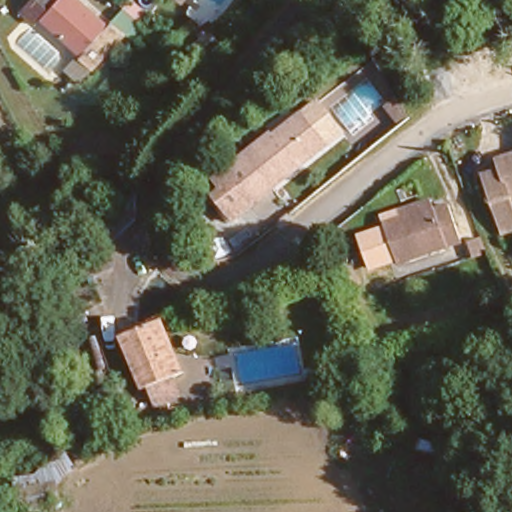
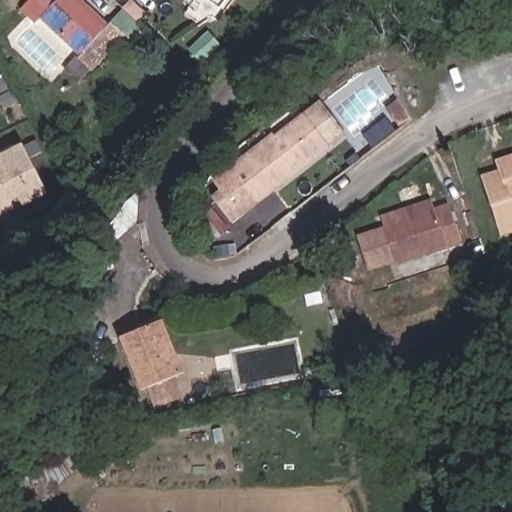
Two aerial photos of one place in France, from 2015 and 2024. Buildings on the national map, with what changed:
unchanged [(83,45),(44,9),(38,15),(22,0),(91,0),(110,16),(114,13),(125,24),(94,56),(82,71),(70,60),(83,46),(83,45)]
unchanged [(404,101),(419,117),(408,125),(394,109),(404,101)]
unchanged [(226,172),(269,138),(272,141),(301,118),(325,149),(252,206),(226,172)]
new [(19,143),(42,188),(0,210),(0,153),(19,143)]
unchanged [(484,177),(504,171),(500,159),(512,154),(512,220),(498,225),(484,177)]
unchanged [(463,234),(397,254),(385,216),(403,211),(401,203),(432,193),(435,201),(450,197),(463,234)]
unchanged [(116,331),(152,316),(160,314),(181,365),(174,369),(138,383),(116,331)]
unchanged [(328,367),(329,378),(321,380),(319,369),(328,367)]

